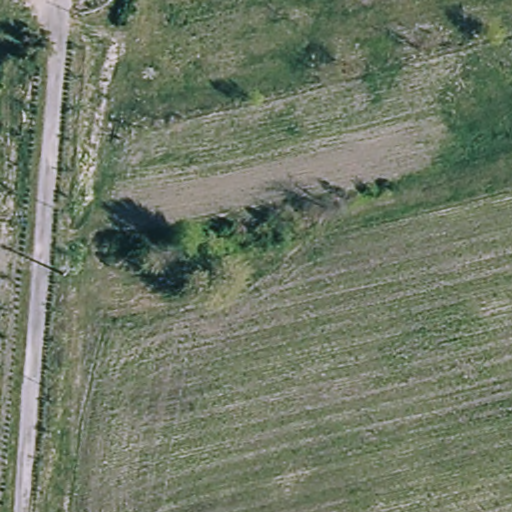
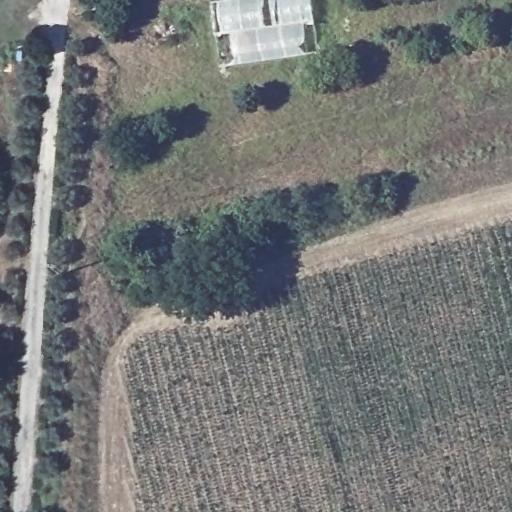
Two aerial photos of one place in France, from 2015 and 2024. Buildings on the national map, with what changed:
new [(222,69),(221,52),(230,52),(228,36),(227,29),(217,30),(213,5),(250,0),(312,0),(316,24),(321,55),(222,69)]

